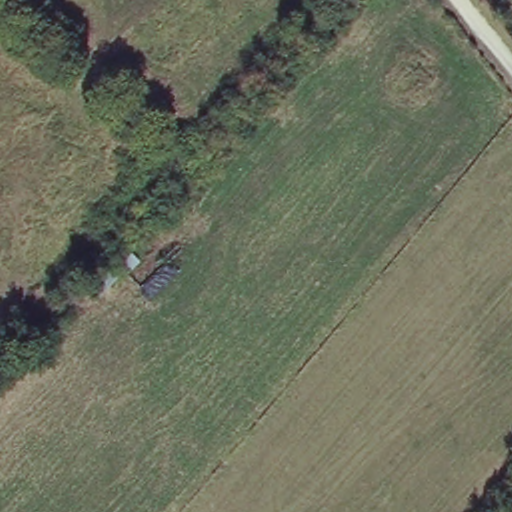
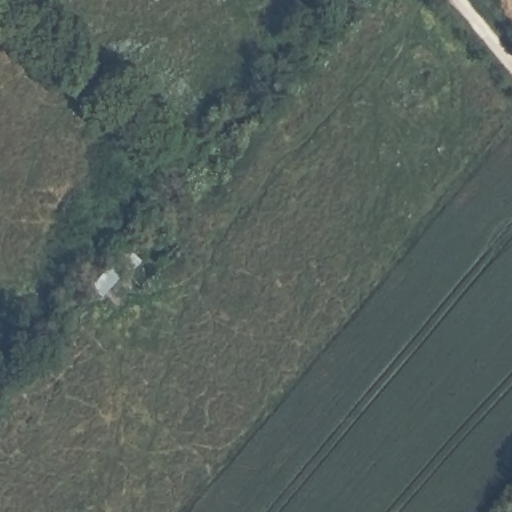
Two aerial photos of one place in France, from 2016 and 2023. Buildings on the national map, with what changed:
unchanged [(139,261),(122,275),(105,262),(124,245),(139,261)]

